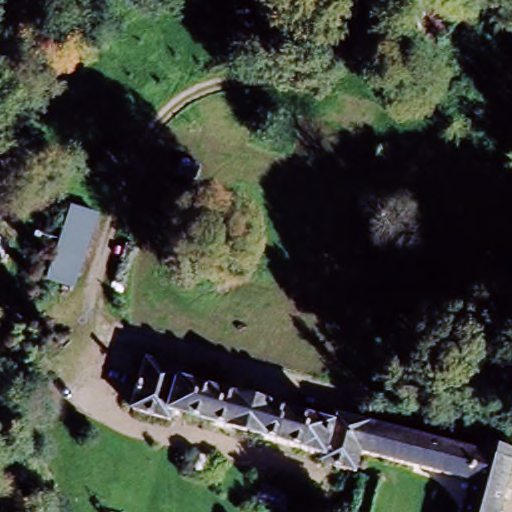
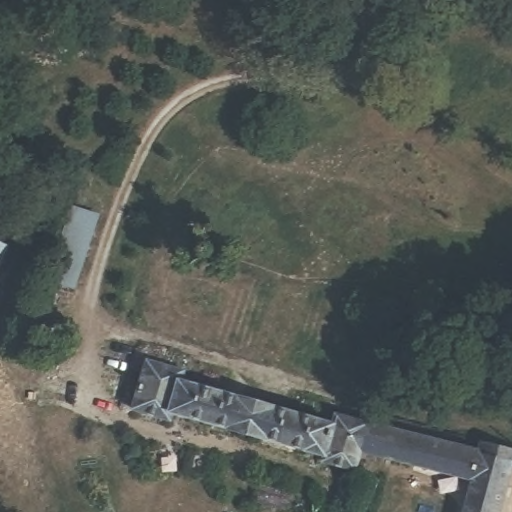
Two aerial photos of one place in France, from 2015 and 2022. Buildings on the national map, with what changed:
unchanged [(7,245),(0,263),(0,242),(7,245)]
unchanged [(183,372),(325,412),(330,407),(369,419),(358,457),(352,479),(310,466),(306,457),(124,408),(136,354),(177,364),(183,372)]
unchanged [(512,461),(498,512),(463,512),(470,489),(358,457),(369,419),(512,461)]

